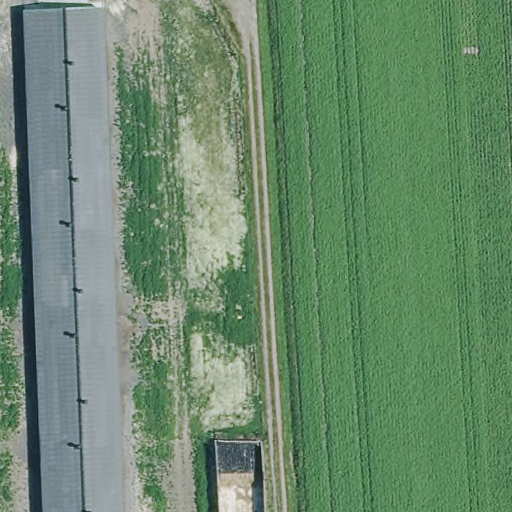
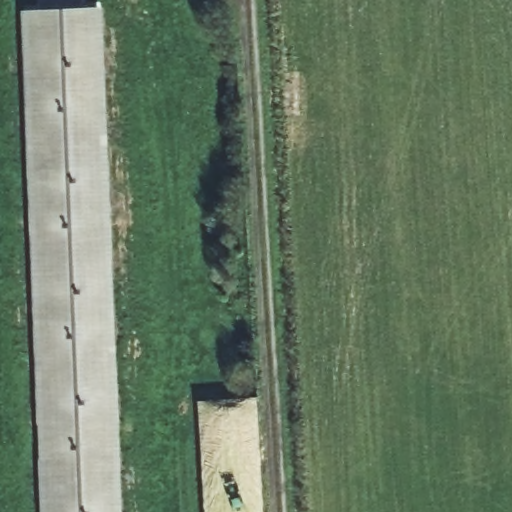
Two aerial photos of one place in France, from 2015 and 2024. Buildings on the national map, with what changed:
unchanged [(103,9),(123,512),(41,512),(22,12),(103,9)]

